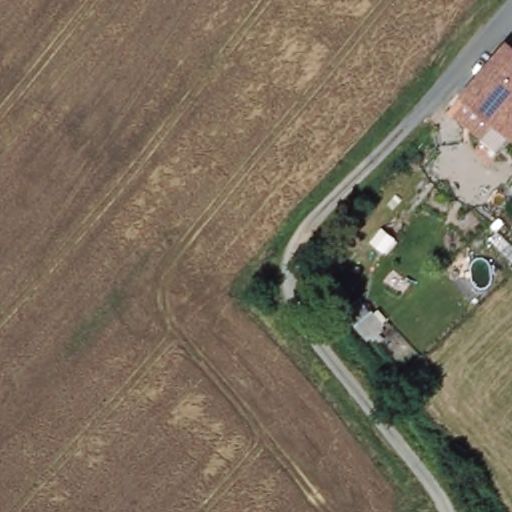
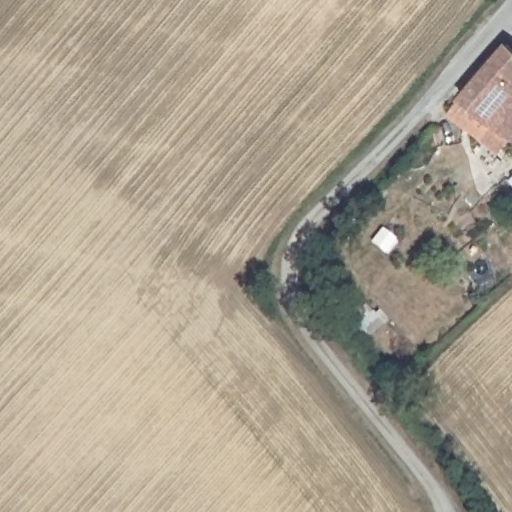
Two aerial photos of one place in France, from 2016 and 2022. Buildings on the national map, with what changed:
unchanged [(512,45),(512,124),(506,131),(484,111),(472,124),(451,105),(504,38),(512,45)]

